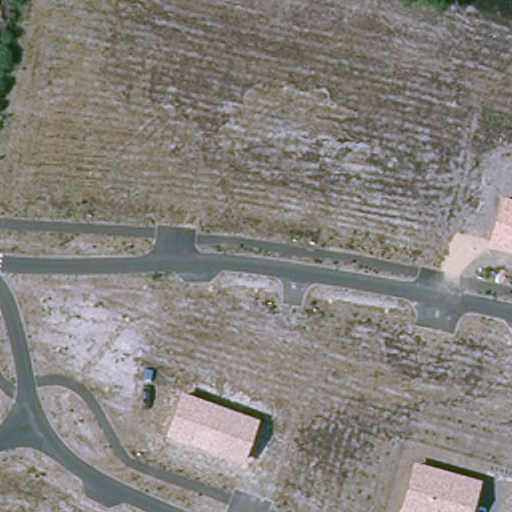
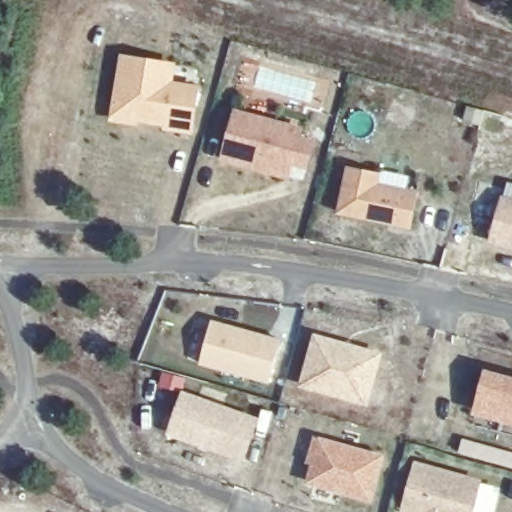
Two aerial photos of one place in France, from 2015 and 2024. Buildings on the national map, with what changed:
new [(176,63),(173,80),(200,85),(192,134),(163,130),(164,124),(139,121),(138,126),(109,122),(120,53),(176,63)]
new [(236,111),(300,129),(298,137),(312,142),(306,166),(291,162),(288,170),(287,176),(222,157),(224,152),(236,111)]
new [(382,173),(380,183),(419,192),(412,228),(336,214),(347,166),(382,173)]
unchanged [(501,197),(512,200),(512,251),(488,245),(501,197)]
new [(281,339),(270,383),(199,364),(212,318),(281,339)]
new [(348,397),(300,384),(314,335),(377,353),(370,380),(364,402),(348,397)]
new [(512,380),(512,419),(475,409),(486,373),(512,380)]
unchanged [(244,465),(166,437),(182,392),(259,419),(244,465)]
new [(310,464),(304,463),(314,434),(385,455),(371,502),(305,483),(310,464)]
unchanged [(412,460),(483,481),(473,512),(405,512),(399,510),(412,460)]

